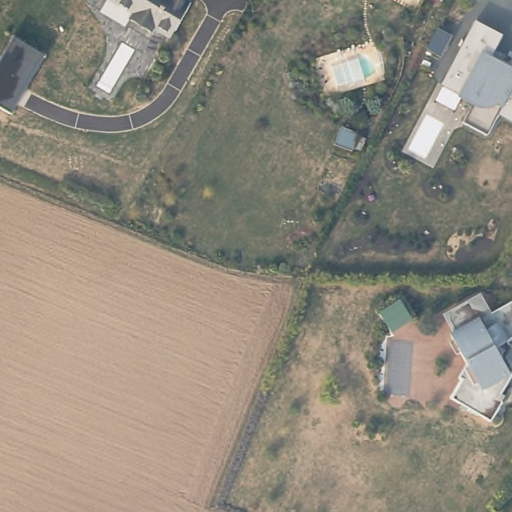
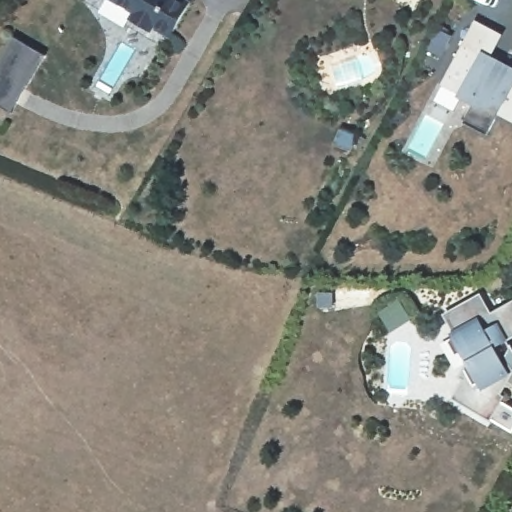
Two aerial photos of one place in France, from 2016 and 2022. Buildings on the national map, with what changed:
unchanged [(190,6),(169,41),(152,30),(150,33),(130,21),(134,15),(110,0),(180,0),(190,6)]
unchanged [(478,21),(503,35),(493,56),(512,66),(512,120),(498,114),(487,133),(465,122),(475,106),(461,97),(444,84),(478,21)]
unchanged [(15,37),(44,55),(11,111),(0,104),(0,63),(15,37)]
unchanged [(510,349),(511,348),(512,349),(512,379),(497,403),(503,406),(491,426),(452,403),(463,383),(460,381),(468,367),(452,338),(456,336),(449,323),(450,316),(470,305),(481,298),(491,316),(512,305),(512,342),(507,345),(510,349)]
unchanged [(401,300),(411,317),(390,330),(380,313),(401,300)]

